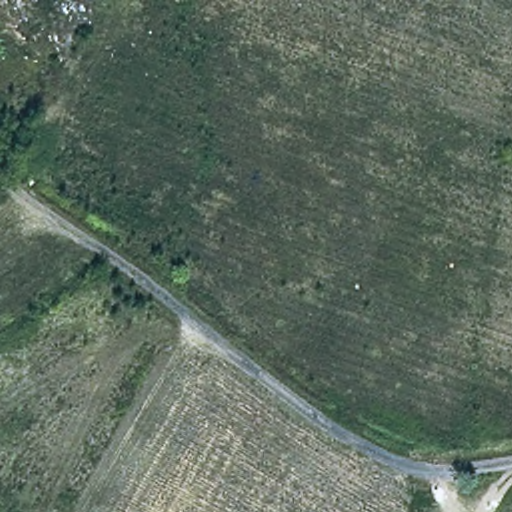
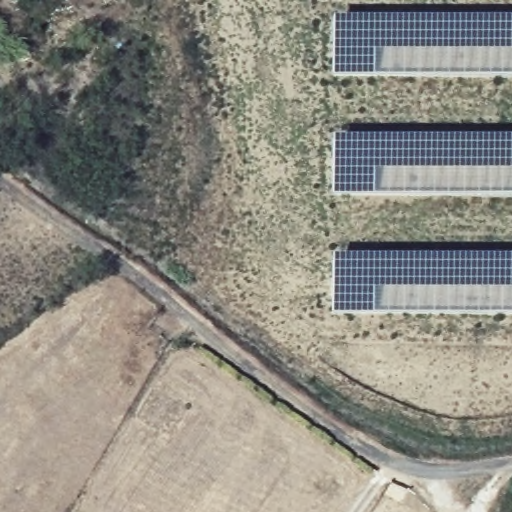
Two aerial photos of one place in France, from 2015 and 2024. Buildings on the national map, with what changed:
new [(330,15),(351,14),(512,14),(512,74),(442,74),(330,75),(330,15)]
new [(331,134),(347,132),(391,134),(512,133),(512,194),(490,194),(380,195),(330,194),(331,134)]
new [(331,254),(512,253),(512,313),(436,311),(331,313),(331,254)]

